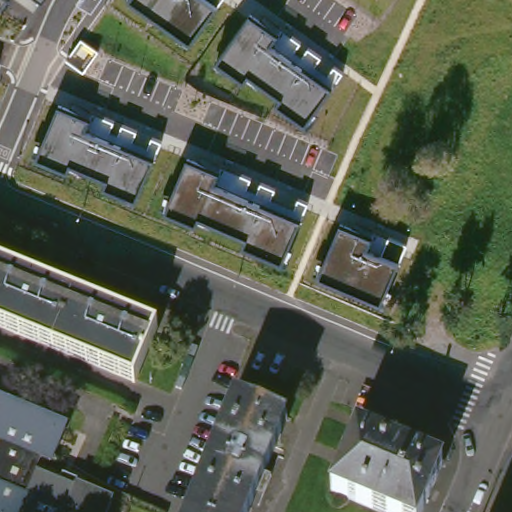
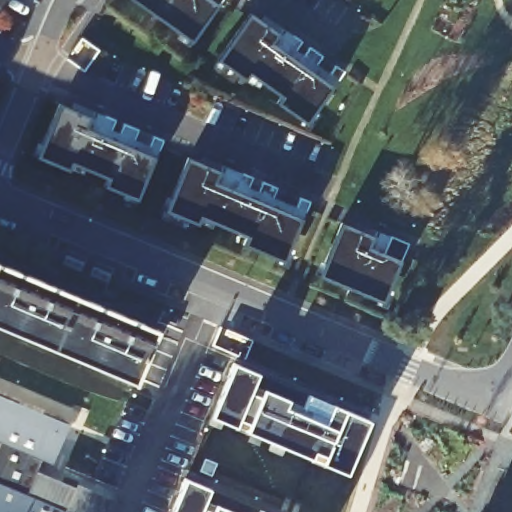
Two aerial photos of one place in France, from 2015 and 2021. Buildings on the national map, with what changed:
unchanged [(2,7),(0,6),(0,0),(6,0),(2,7)]
unchanged [(38,1),(37,0),(39,0),(38,1)]
unchanged [(216,2),(189,39),(137,0),(219,0),(216,2)]
unchanged [(330,89),(306,122),(278,101),(282,95),(249,75),(245,79),(218,61),(250,14),(278,33),(282,28),(301,41),(295,49),(303,55),(309,46),(322,56),(317,65),(328,72),(335,64),(345,71),(330,89)]
unchanged [(154,158),(137,198),(106,184),(108,178),(71,162),(69,168),(37,156),(59,103),(90,118),(93,111),(116,121),(110,135),(116,138),(122,123),(138,131),(132,145),(146,151),(152,135),(162,139),(154,158)]
unchanged [(302,219),(282,259),(245,242),(247,235),(199,216),(196,223),(167,211),(189,156),(221,170),(224,165),(252,177),(245,192),(254,196),(262,180),(277,187),(270,203),(292,212),(299,196),(310,201),(302,219)]
unchanged [(400,257),(382,303),(319,275),(340,224),(372,237),(367,248),(382,254),(390,234),(408,241),(400,257)]
unchanged [(134,378),(0,322),(0,266),(154,331),(134,378)]
new [(251,395),(306,417),(313,397),(363,417),(344,465),(217,413),(235,367),(261,377),(251,395)]
unchanged [(52,471),(119,496),(112,512),(0,512),(0,444),(0,393),(73,425),(52,471)]
demolished [(292,418),(253,512),(194,512),(241,397),(292,418)]
demolished [(447,465),(428,512),(382,512),(336,492),(362,429),(447,465)]
new [(208,489),(197,508),(205,512),(174,512),(188,480),(208,489)]

